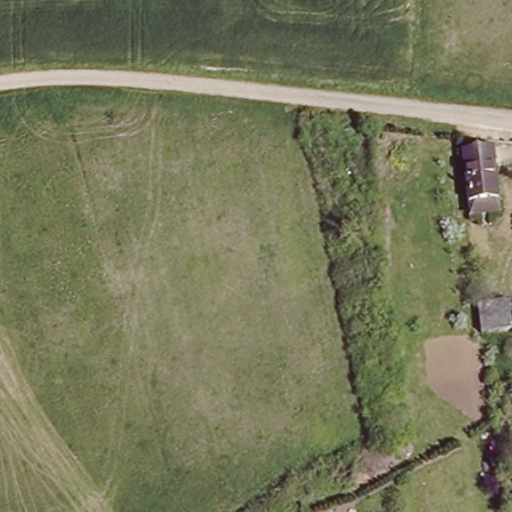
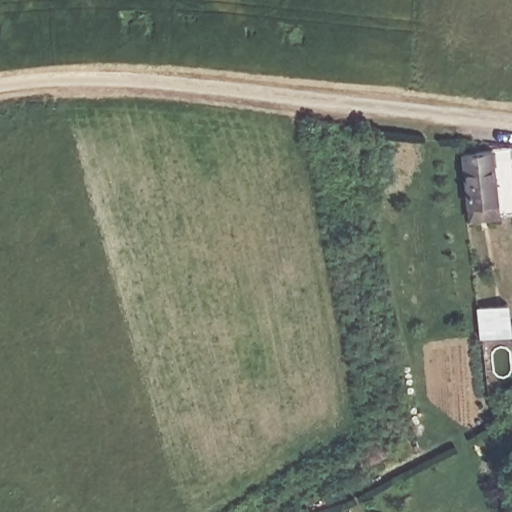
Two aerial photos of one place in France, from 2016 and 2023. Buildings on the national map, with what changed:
unchanged [(467,216),(465,202),(461,154),(489,151),(494,200),(495,213),(467,216)]
unchanged [(505,301),(509,331),(480,335),(477,305),(505,301)]

